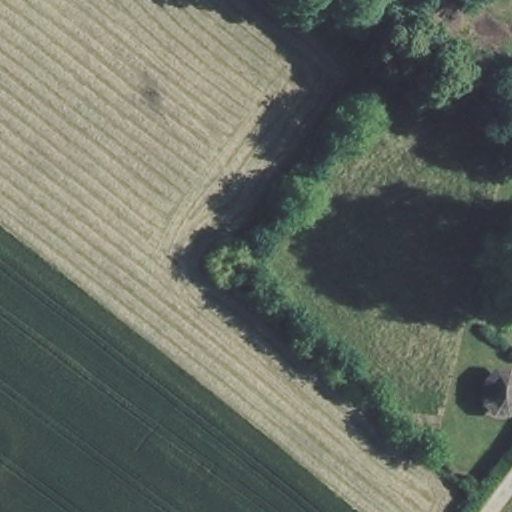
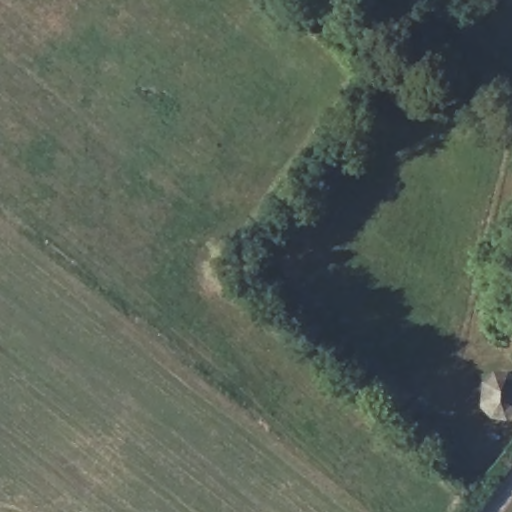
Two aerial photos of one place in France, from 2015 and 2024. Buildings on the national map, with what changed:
unchanged [(512,388),(512,410),(502,410),(494,402),(505,388),(512,388)]

